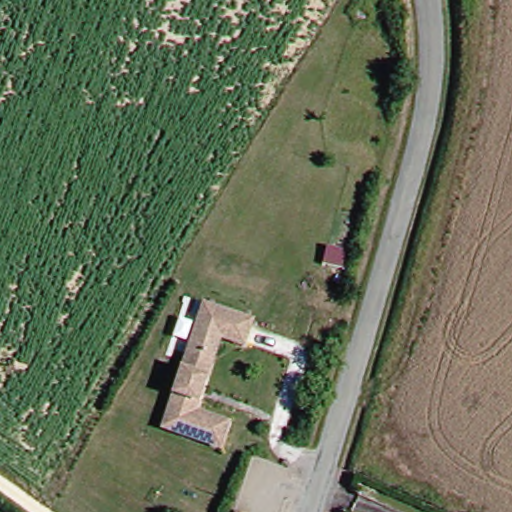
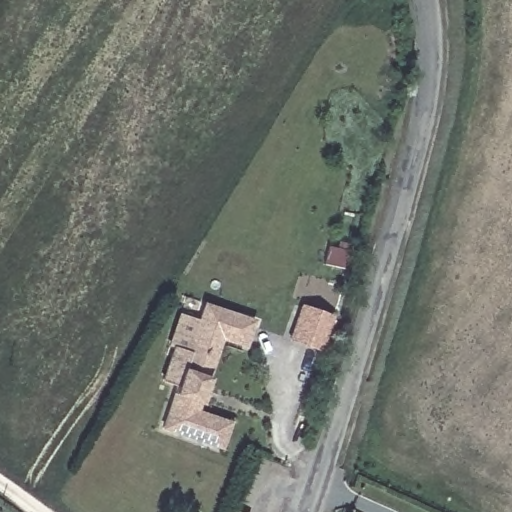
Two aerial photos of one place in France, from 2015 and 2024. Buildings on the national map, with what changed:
new [(320,352),(287,341),(300,303),(333,315),(320,352)]
unchanged [(207,307),(257,322),(249,346),(225,340),(200,416),(234,426),(228,450),(170,433),(207,307)]

